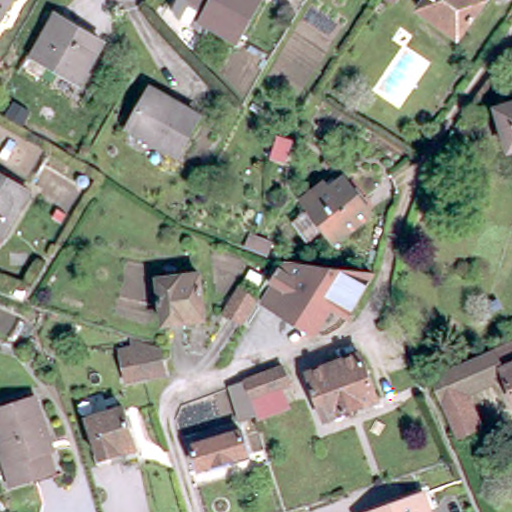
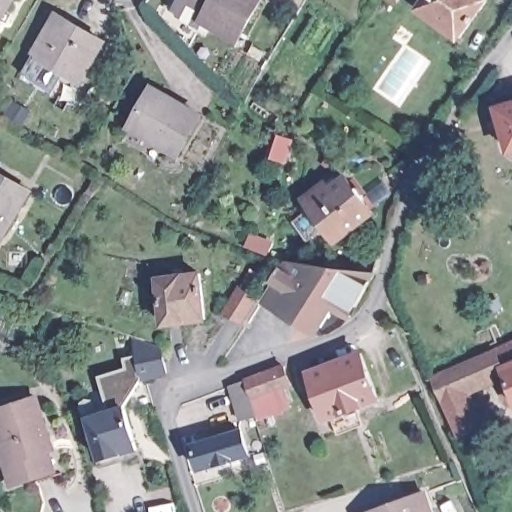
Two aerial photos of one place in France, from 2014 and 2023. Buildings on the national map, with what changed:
unchanged [(0,0),(8,0),(0,15),(0,0)]
unchanged [(205,16),(210,6),(199,0),(260,0),(240,34),(205,16)]
unchanged [(465,38),(446,23),(426,9),(433,0),(491,0),(492,1),(465,38)]
unchanged [(84,78),(37,51),(59,10),(106,38),(84,78)]
unchanged [(180,155),(131,128),(152,89),(201,116),(180,155)]
unchanged [(511,98),(512,98),(512,101),(511,98)]
unchanged [(500,105),(512,101),(512,142),(500,105)]
unchanged [(293,184),(278,177),(288,154),(302,161),(293,184)]
unchanged [(0,234),(0,168),(31,187),(2,235),(0,234)]
unchanged [(333,185),(348,174),(375,209),(337,237),(305,195),(327,179),(333,185)]
unchanged [(268,261),(244,252),(249,241),(273,251),(268,261)]
unchanged [(292,257),(381,269),(355,313),(338,303),(321,329),(267,297),(292,257)]
unchanged [(211,315),(170,319),(165,273),(207,269),(211,315)]
unchanged [(231,309),(246,283),(263,293),(247,319),(231,309)]
unchanged [(121,347),(134,343),(132,336),(161,344),(167,370),(130,379),(121,347)]
unchanged [(489,351),(512,341),(512,405),(500,377),(489,351)]
unchanged [(326,417),(310,369),(362,350),(381,404),(367,410),(351,416),(349,409),(326,417)]
unchanged [(489,351),(500,377),(461,394),(475,428),(452,438),(445,419),(444,418),(426,377),(489,351)]
unchanged [(230,387),(245,381),(247,380),(285,366),(291,386),(285,388),(291,406),(257,418),(257,415),(242,420),(230,387)]
unchanged [(0,446),(0,440),(3,439),(0,428),(0,406),(37,394),(52,440),(47,441),(55,468),(20,479),(11,482),(5,463),(0,446)]
unchanged [(125,399),(126,399),(140,439),(140,441),(128,445),(130,451),(106,459),(103,450),(90,411),(125,399)]
unchanged [(251,450),(203,465),(195,441),(244,426),(251,450)]
unchanged [(432,512),(374,512),(425,493),(432,512)]

